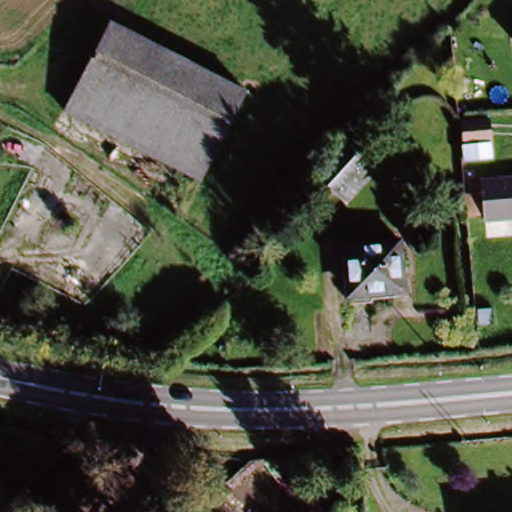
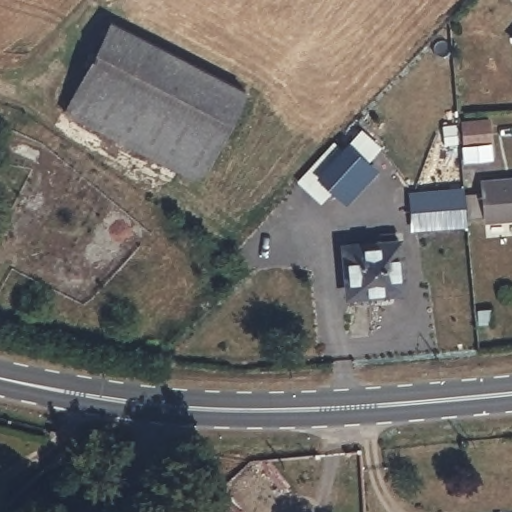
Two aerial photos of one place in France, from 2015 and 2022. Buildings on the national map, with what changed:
unchanged [(112,31),(245,91),(205,179),(72,119),(112,31)]
unchanged [(494,130),(465,132),(462,111),(491,109),(494,130)]
unchanged [(332,196),(319,183),(351,150),(365,162),(332,196)]
unchanged [(512,215),(491,216),(489,181),(512,180),(512,215)]
new [(462,225),(415,230),(411,193),(458,189),(462,225)]
new [(477,191),(479,213),(461,215),(459,192),(477,191)]
unchanged [(385,284),(385,297),(354,299),(346,240),(399,235),(400,248),(413,248),(414,267),(404,267),(403,284),(385,284)]
unchanged [(287,457),(297,448),(302,455),(293,465),(287,457)]
unchanged [(217,499),(229,512),(202,512),(217,499)]

